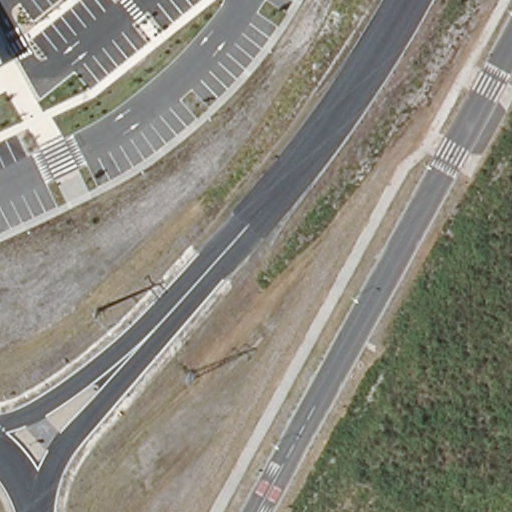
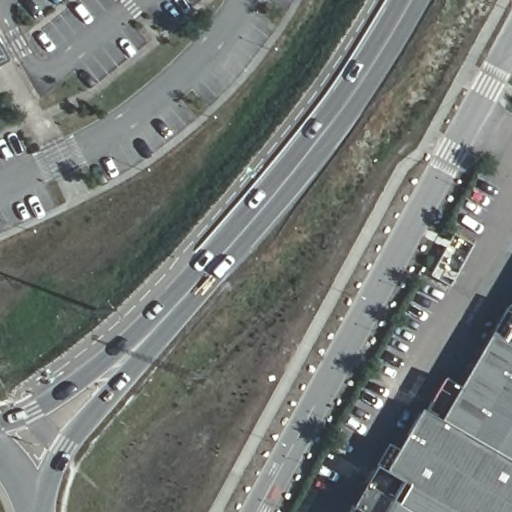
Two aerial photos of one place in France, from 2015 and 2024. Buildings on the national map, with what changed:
unchanged [(5,62),(0,65),(0,53),(5,62)]
new [(512,315),(512,345),(499,337),(512,315)]
new [(512,348),(512,465),(437,422),(488,334),(512,348)]
new [(383,443),(395,450),(418,411),(437,422),(512,465),(512,512),(344,512),(383,443)]

